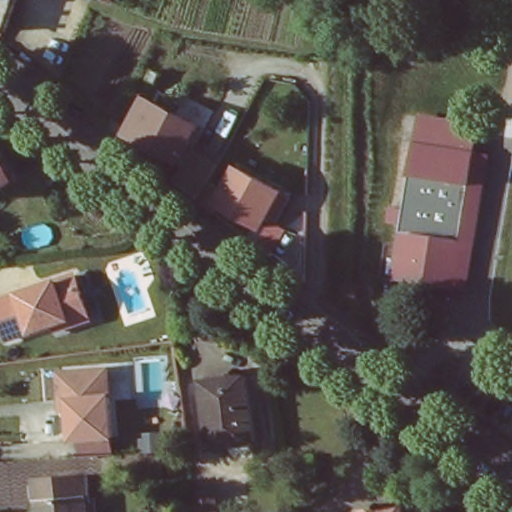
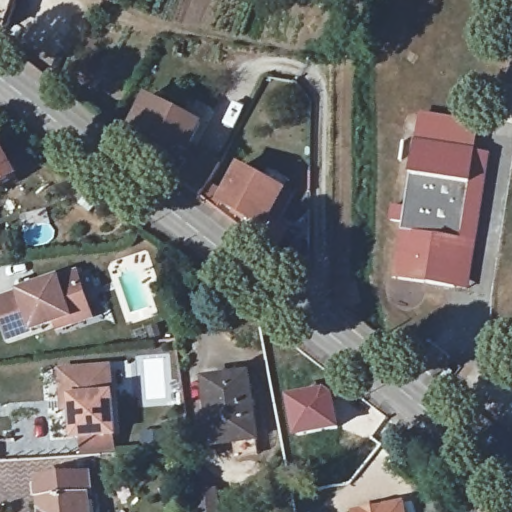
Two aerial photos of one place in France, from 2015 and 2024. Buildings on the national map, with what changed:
unchanged [(8,31),(0,28),(0,0),(18,0),(8,31)]
unchanged [(95,1),(92,0),(95,0),(95,1)]
unchanged [(320,2),(327,2),(327,9),(319,8),(320,2)]
unchanged [(147,98),(200,125),(182,161),(129,135),(147,98)]
unchanged [(455,288),(394,278),(403,223),(391,221),(393,207),(405,209),(416,142),(476,152),(455,288)]
unchanged [(19,180),(0,191),(0,146),(19,180)]
unchanged [(489,154),(467,290),(455,288),(476,152),(489,154)]
unchanged [(231,163),(274,186),(254,221),(212,198),(231,163)]
unchanged [(251,239),(262,219),(277,226),(265,249),(251,239)]
unchanged [(83,278),(96,316),(15,343),(2,305),(83,278)]
unchanged [(75,440),(73,406),(65,406),(65,397),(63,372),(108,370),(113,369),(114,396),(117,437),(75,440)]
unchanged [(233,453),(231,439),(209,442),(200,376),(244,370),(252,436),(251,436),(253,451),(233,453)]
new [(334,388),(342,430),(296,440),(286,397),(334,388)]
unchanged [(88,492),(89,503),(100,502),(101,512),(42,512),(40,496),(88,492)]
unchanged [(216,492),(219,512),(199,512),(197,495),(216,492)]
unchanged [(409,512),(359,512),(408,502),(409,512)]

